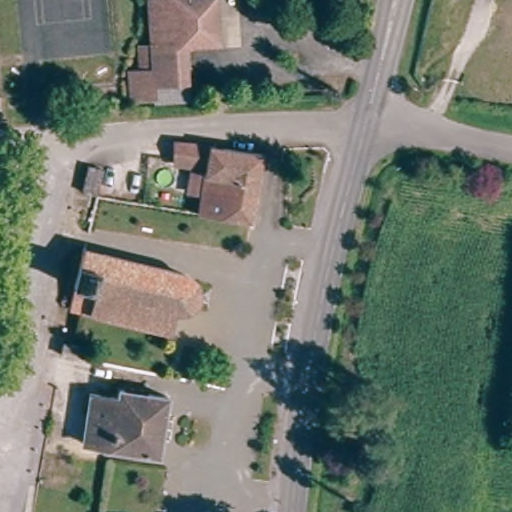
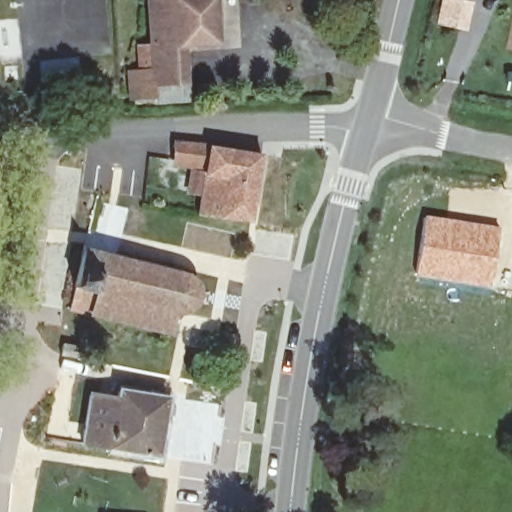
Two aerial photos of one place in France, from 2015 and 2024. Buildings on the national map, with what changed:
unchanged [(223,41),(186,43),(187,80),(158,83),(158,101),(130,101),(129,66),(137,66),(137,52),(145,52),(142,0),(219,0),(223,41)]
unchanged [(248,226),(196,217),(201,164),(167,162),(168,151),(193,150),(213,156),(216,150),(258,151),(248,226)]
unchanged [(96,180),(91,208),(77,205),(82,177),(96,180)]
new [(424,214),(500,226),(489,287),(414,275),(424,214)]
unchanged [(184,272),(194,277),(201,286),(200,297),(195,305),(183,308),(178,335),(98,320),(102,298),(74,288),(81,252),(184,272)]
demolished [(88,360),(84,381),(62,377),(65,356),(88,360)]
unchanged [(156,457),(108,451),(108,448),(79,445),(85,395),(114,398),(115,389),(163,395),(156,457)]

